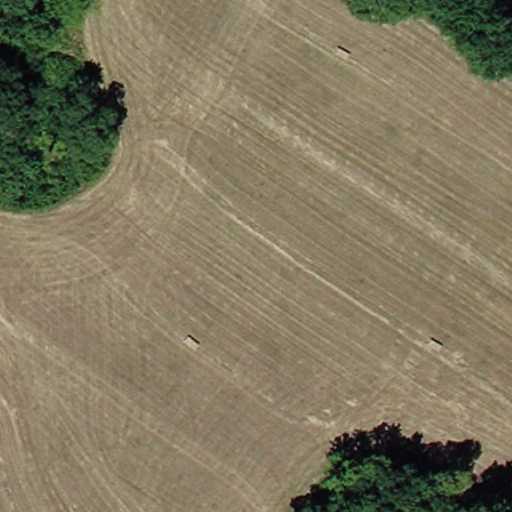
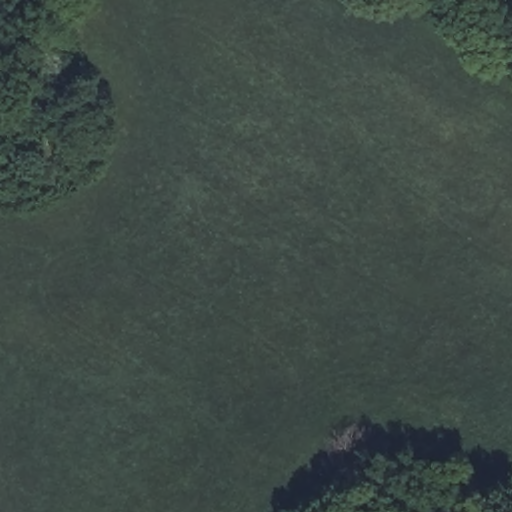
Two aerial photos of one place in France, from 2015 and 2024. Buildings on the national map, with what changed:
[]

